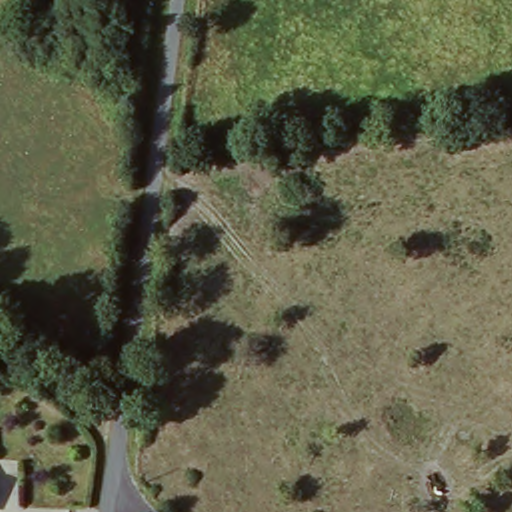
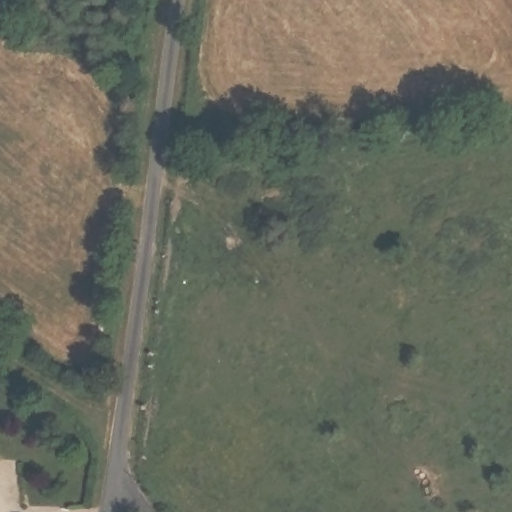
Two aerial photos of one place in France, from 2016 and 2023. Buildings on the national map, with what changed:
unchanged [(293,145),(297,169),(265,173),(263,149),(293,145)]

